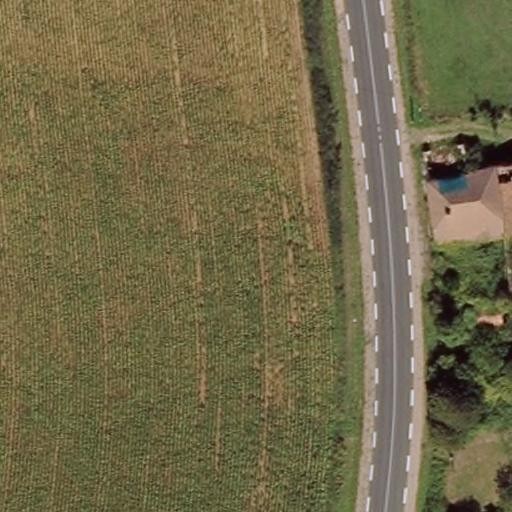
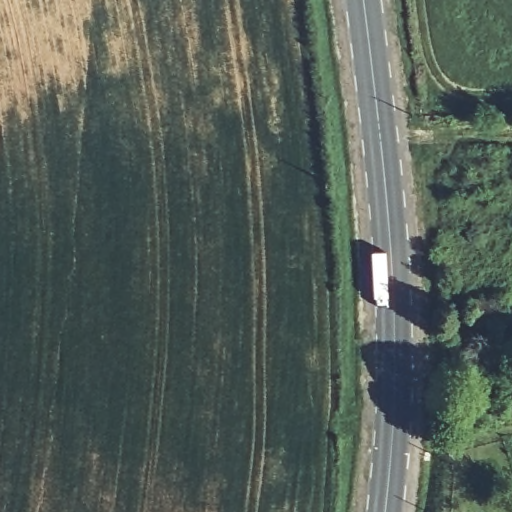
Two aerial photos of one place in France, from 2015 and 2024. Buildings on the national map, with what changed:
demolished [(426,175),(468,169),(512,162),(512,284),(508,235),(434,242),(426,175)]
unchanged [(508,301),(510,319),(470,325),(468,303),(508,301)]

